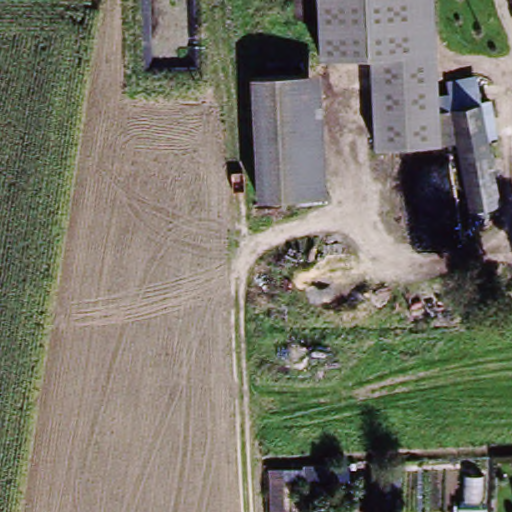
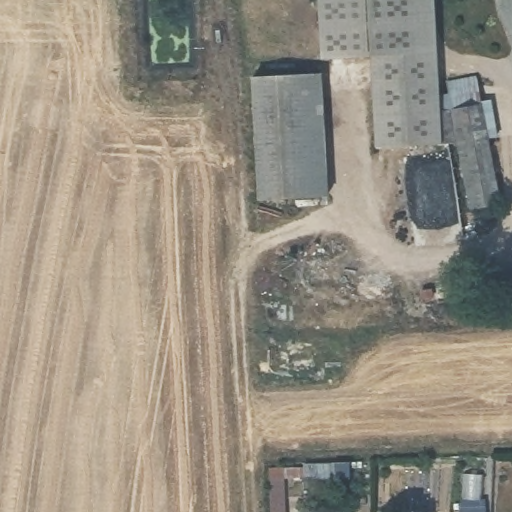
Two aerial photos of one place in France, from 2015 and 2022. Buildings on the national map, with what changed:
unchanged [(411,59),(383,62),(331,68),(324,0),(440,0),(447,55),(411,59)]
unchanged [(447,55),(453,118),(455,146),(408,152),(392,154),(383,62),(411,59),(447,55)]
unchanged [(321,80),(328,200),(256,203),(251,82),(321,80)]
unchanged [(466,100),(494,99),(504,211),(476,213),(470,145),(459,146),(455,146),(453,118),(456,117),(468,116),(467,113),(466,100)]
unchanged [(501,505),(501,512),(476,512),(476,506),(501,505)]

